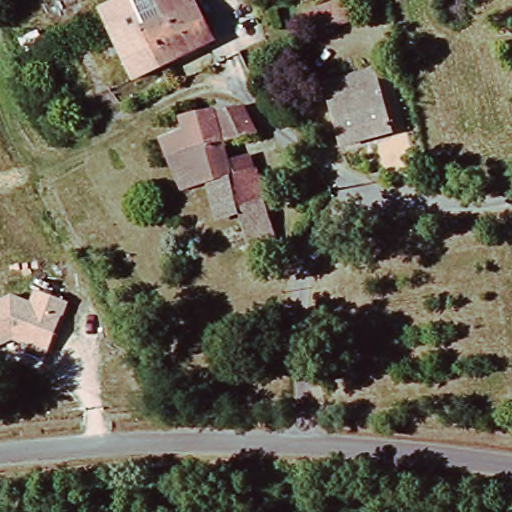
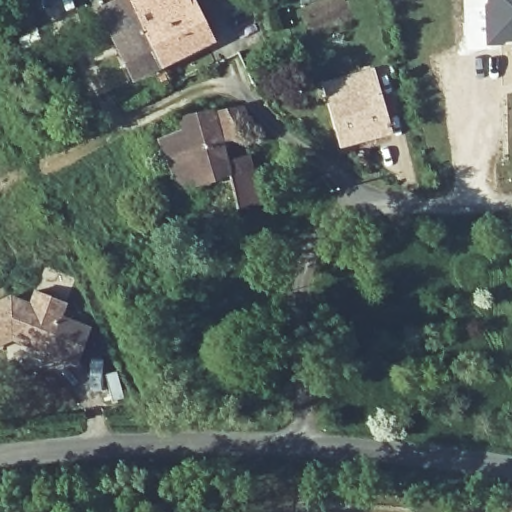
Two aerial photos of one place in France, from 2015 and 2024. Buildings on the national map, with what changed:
unchanged [(109,8),(105,0),(126,0),(157,71),(130,84),(95,15),(109,8)]
unchanged [(145,0),(148,6),(159,0),(180,0),(203,49),(157,71),(126,0),(145,0)]
new [(483,0),(512,0),(512,40),(486,41),(483,0)]
unchanged [(319,30),(321,36),(301,42),(292,16),(337,2),(342,24),(319,30)]
unchanged [(340,149),(320,83),(366,71),(385,137),(340,149)]
unchanged [(238,105),(248,132),(214,141),(204,109),(238,105)]
unchanged [(235,210),(225,177),(175,185),(156,136),(176,129),(173,116),(204,109),(214,141),(220,161),(241,155),(247,171),(259,202),(276,242),(250,250),(235,210)]
unchanged [(10,293),(29,300),(34,288),(68,301),(48,353),(12,340),(0,346),(0,297),(10,293)]

